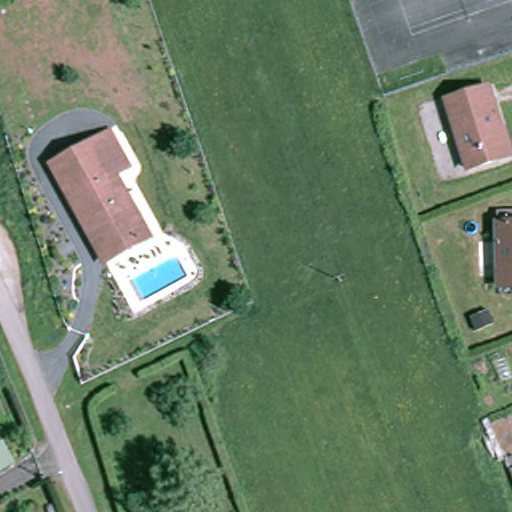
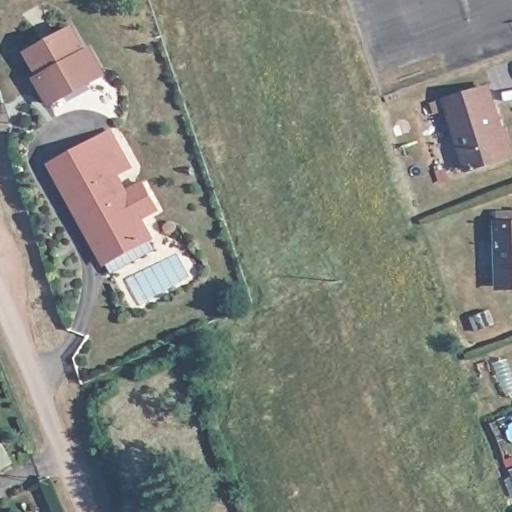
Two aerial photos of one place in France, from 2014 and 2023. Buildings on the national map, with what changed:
new [(87,48),(91,46),(107,74),(50,105),(35,76),(39,74),(25,50),(74,23),(87,48)]
unchanged [(480,167),(470,170),(448,100),(457,97),(491,86),(512,157),(480,167)]
unchanged [(84,225),(53,165),(110,136),(112,135),(130,169),(123,172),(116,176),(142,226),(150,241),(147,242),(126,253),(104,264),(84,225)]
unchanged [(500,229),(500,220),(512,219),(512,295),(500,296),(500,229)]
unchanged [(0,464),(0,443),(9,458),(0,464)]

